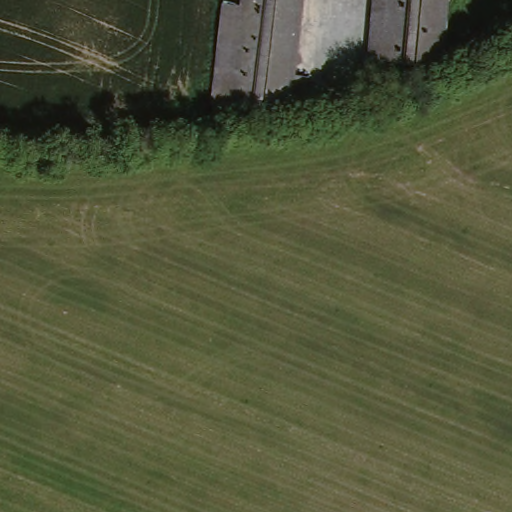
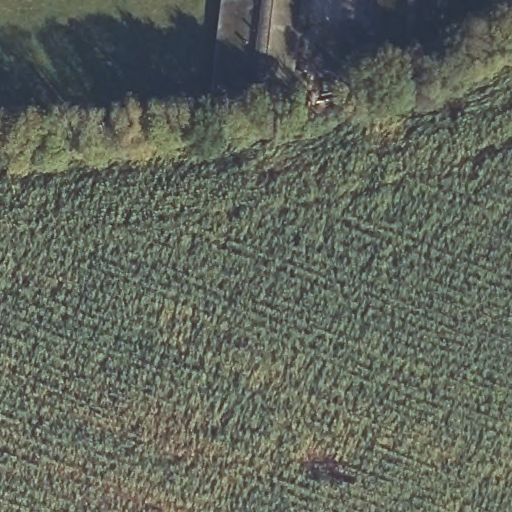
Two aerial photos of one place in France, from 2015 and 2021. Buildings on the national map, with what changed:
unchanged [(235,5),(254,7),(254,0),(309,0),(298,109),(250,105),(227,103),(226,102),(235,5)]
unchanged [(388,0),(451,0),(446,69),(383,64),(388,0)]

